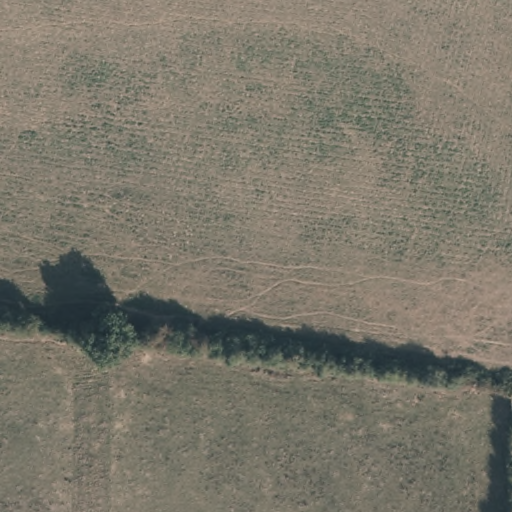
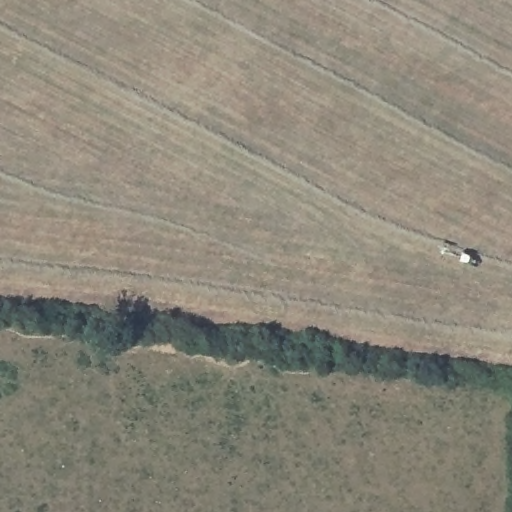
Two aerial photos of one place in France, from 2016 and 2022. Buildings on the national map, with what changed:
[]

